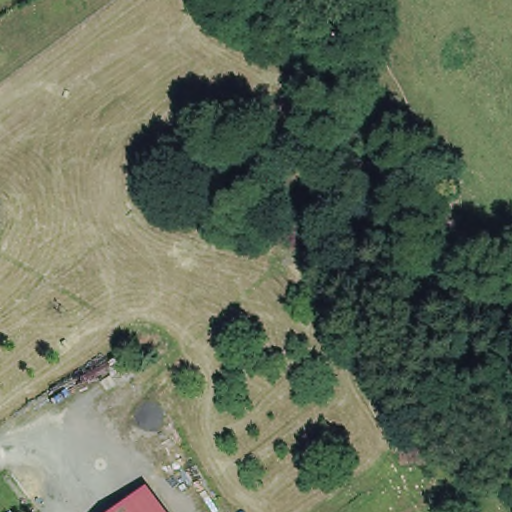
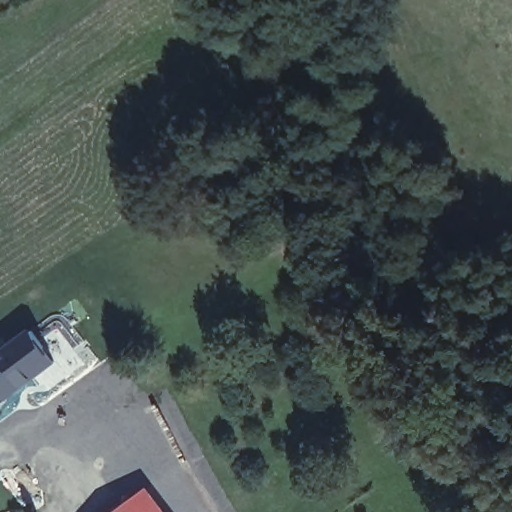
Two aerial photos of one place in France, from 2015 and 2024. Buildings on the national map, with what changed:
new [(57,363),(9,399),(0,386),(0,353),(31,328),(57,363)]
unchanged [(149,485),(153,489),(170,512),(112,512),(149,485)]

